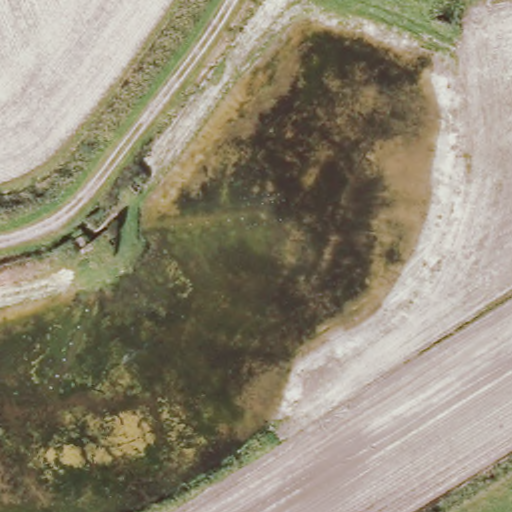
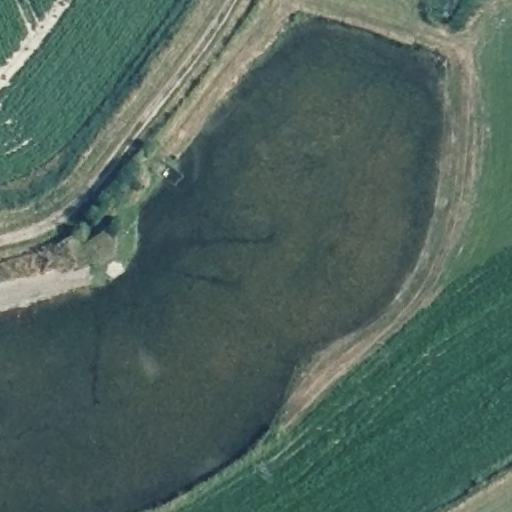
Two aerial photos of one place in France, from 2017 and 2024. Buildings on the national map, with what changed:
unchanged [(102,266),(115,277),(115,287),(107,298),(96,299),(82,286),(102,266)]

